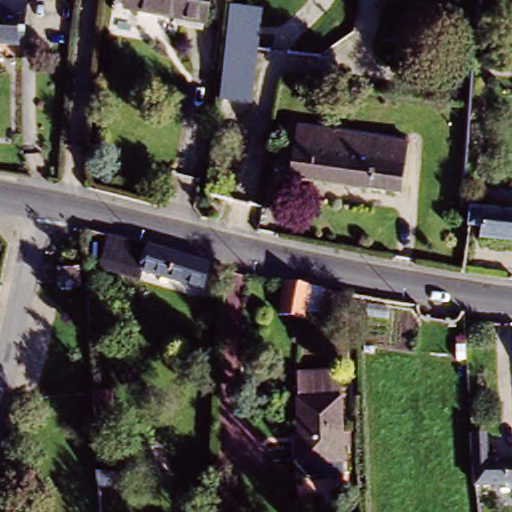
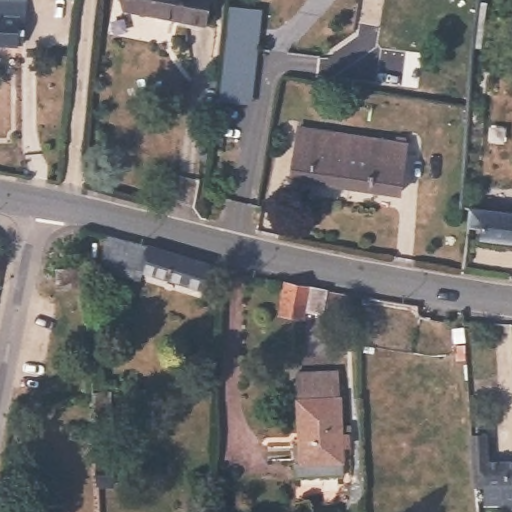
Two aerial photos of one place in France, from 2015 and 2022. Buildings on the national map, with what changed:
unchanged [(6,3),(7,0),(26,0),(26,5),(24,35),(15,34),(15,46),(0,46),(0,3),(6,3)]
unchanged [(182,21),(126,11),(128,0),(209,0),(204,25),(182,21)]
unchanged [(252,103),(221,101),(230,6),(261,11),(252,103)]
unchanged [(405,202),(354,194),(296,184),(305,135),(350,142),(351,136),(359,136),(358,143),(413,151),(405,202)]
unchanged [(481,229),(467,227),(470,211),(512,216),(512,243),(480,240),(481,229)]
unchanged [(158,248),(205,262),(203,269),(197,287),(142,270),(122,264),(120,270),(104,266),(105,233),(158,248)]
unchanged [(76,268),(80,287),(58,290),(56,271),(76,268)]
unchanged [(323,291),(318,316),(302,313),(300,321),(275,316),(282,283),(323,291)]
unchanged [(95,437),(92,395),(92,392),(92,389),(112,389),(112,394),(115,436),(95,437)]
unchanged [(340,435),(347,435),(348,448),(341,448),(342,477),(295,479),(294,445),(298,445),(297,402),(339,401),(340,435)]
unchanged [(485,464),(512,464),(512,485),(472,485),(469,438),(483,437),(485,464)]
unchanged [(97,459),(115,460),(116,487),(98,487),(97,459)]

